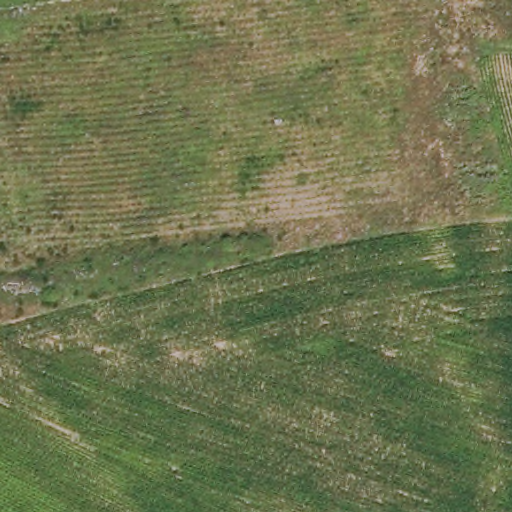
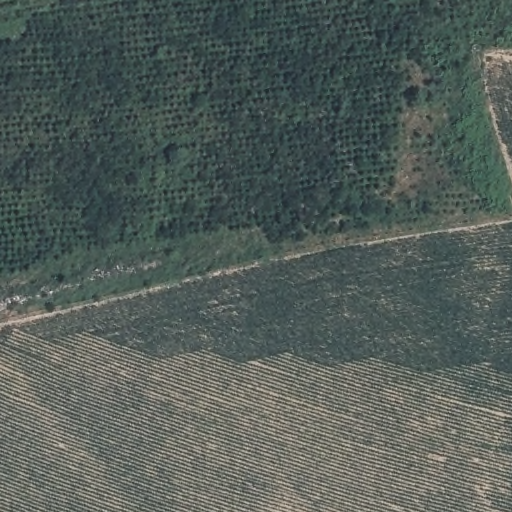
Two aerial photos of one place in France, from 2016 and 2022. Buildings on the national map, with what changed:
[]

